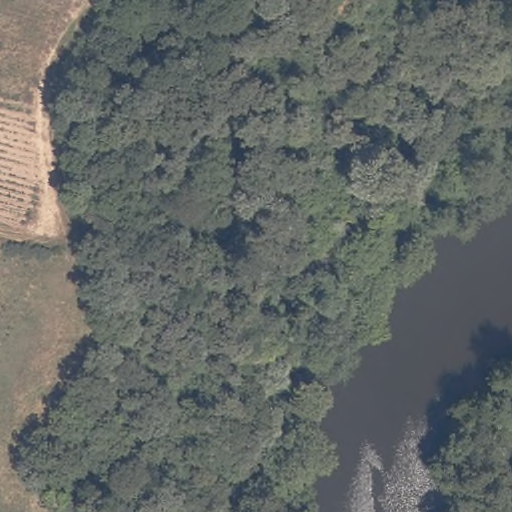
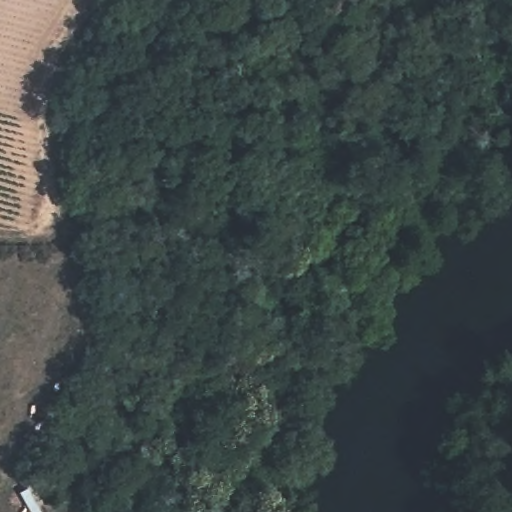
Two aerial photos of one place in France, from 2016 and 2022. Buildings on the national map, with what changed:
[]

